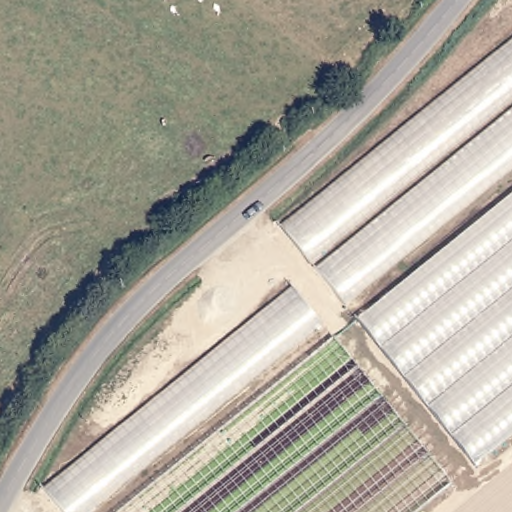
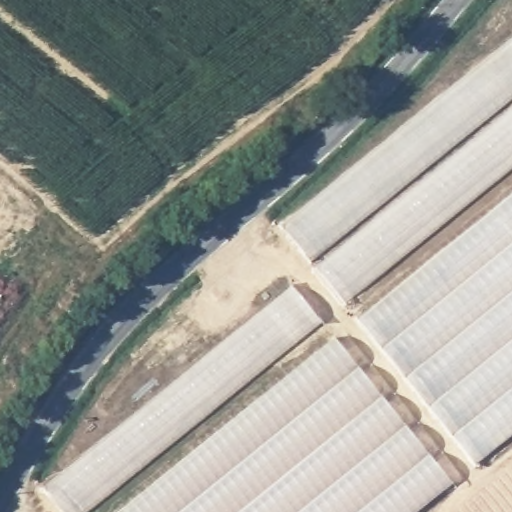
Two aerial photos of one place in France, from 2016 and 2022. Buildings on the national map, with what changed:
unchanged [(302,271),(268,228),(512,35),(512,154),(78,512),(66,512),(43,485),(302,271)]
unchanged [(512,194),(512,435),(477,463),(359,316),(512,194)]
unchanged [(335,338),(452,482),(415,512),(118,512),(335,338)]

